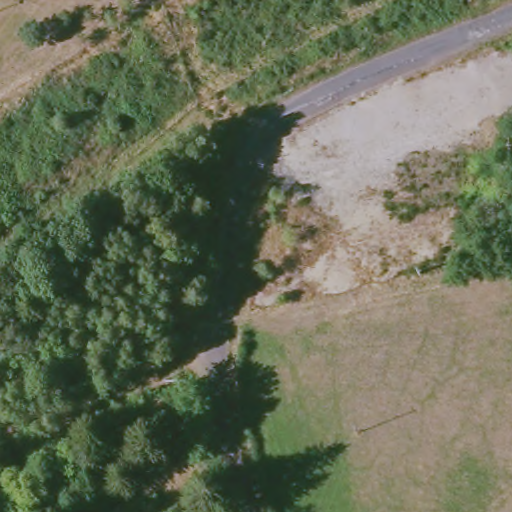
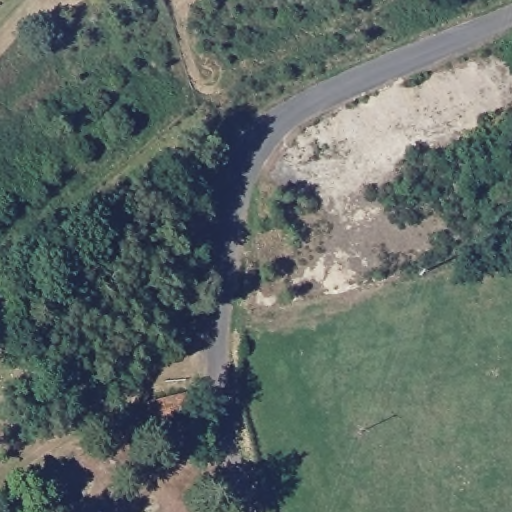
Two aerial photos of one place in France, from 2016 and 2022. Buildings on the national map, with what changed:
unchanged [(151,423),(147,405),(185,396),(189,415),(151,423)]

